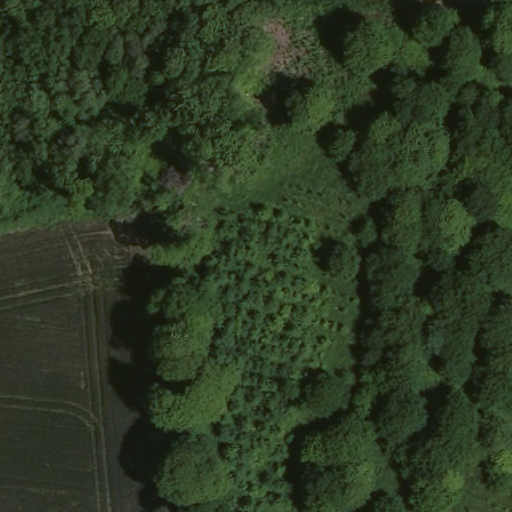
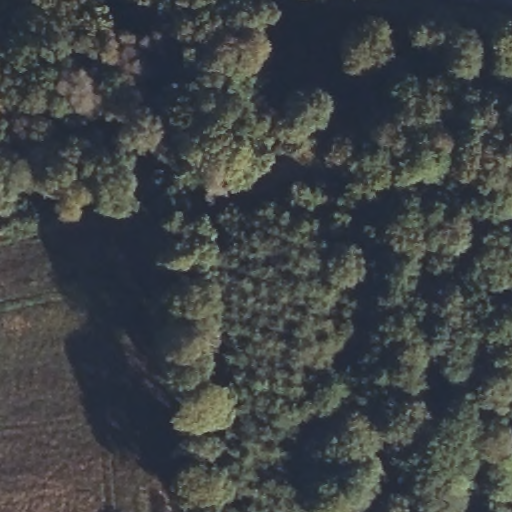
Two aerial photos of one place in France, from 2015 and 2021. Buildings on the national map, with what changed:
[]

